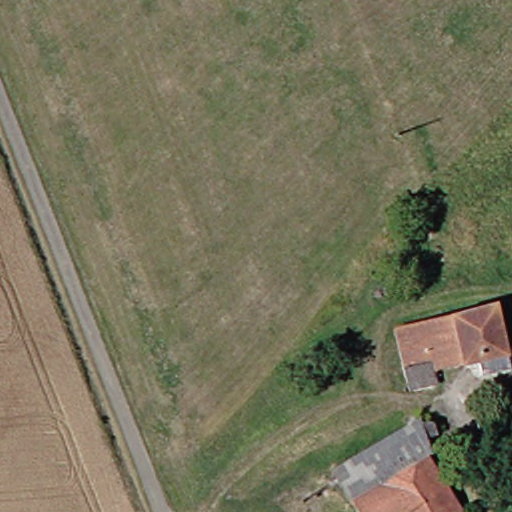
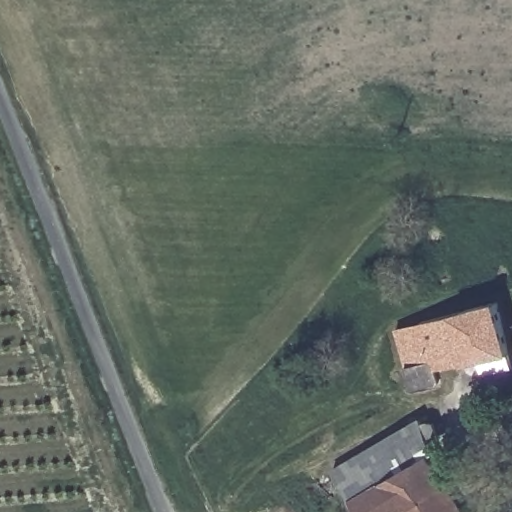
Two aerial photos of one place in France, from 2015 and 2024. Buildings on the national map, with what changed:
unchanged [(407,372),(398,325),(423,320),(498,307),(506,356),(508,372),(479,377),(475,361),(433,368),(435,380),(410,385),(407,372)]
unchanged [(420,416),(423,421),(433,436),(420,443),(462,512),(360,512),(353,501),(335,472),(333,469),(353,457),(416,418),(420,416)]

